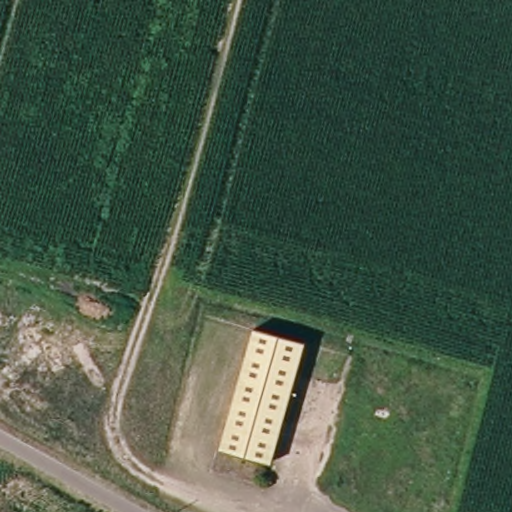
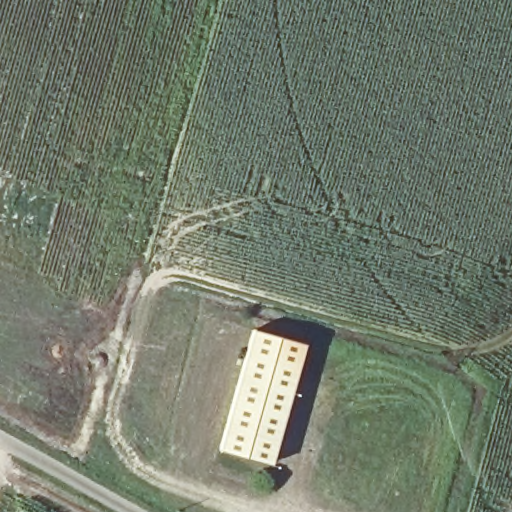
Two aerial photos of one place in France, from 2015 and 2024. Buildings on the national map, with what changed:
unchanged [(304,340),(269,463),(218,448),(254,326),(304,340)]

